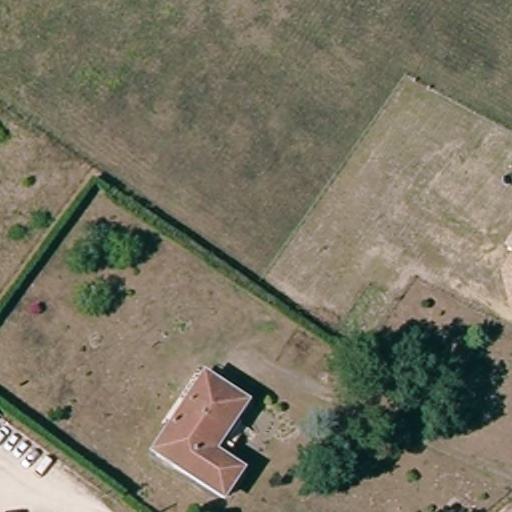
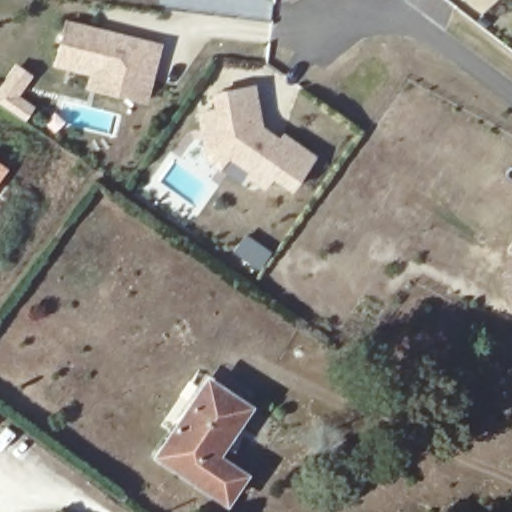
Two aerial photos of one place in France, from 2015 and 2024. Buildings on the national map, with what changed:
new [(85,89),(88,74),(53,65),(63,20),(162,44),(146,106),(85,89)]
new [(24,122),(0,104),(0,84),(15,64),(32,77),(18,96),(34,107),(24,122)]
new [(208,152),(201,111),(216,108),(214,92),(253,85),(256,102),(259,117),(260,124),(272,132),(280,138),(284,134),(314,155),(291,187),(273,174),(265,184),(250,173),(253,169),(229,153),(229,152),(220,165),(209,157),(208,152)]
new [(9,169),(0,181),(0,162),(9,169)]
unchanged [(512,245),(512,250),(510,249),(512,245)]
unchanged [(512,262),(512,299),(506,272),(512,262)]
unchanged [(232,476),(216,498),(150,451),(204,380),(241,408),(233,419),(241,425),(227,442),(220,437),(206,456),(232,476)]
demolished [(4,421),(0,425),(0,418),(4,421)]

